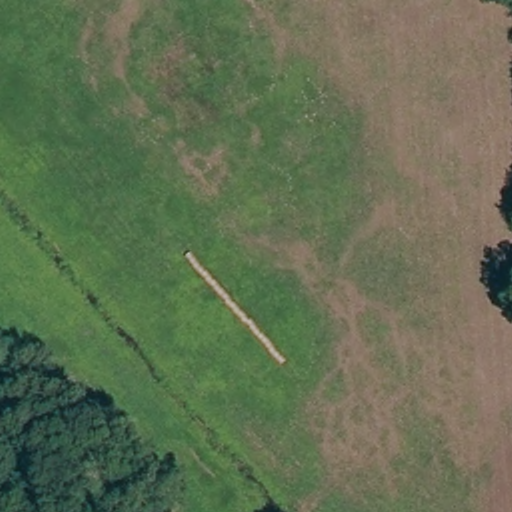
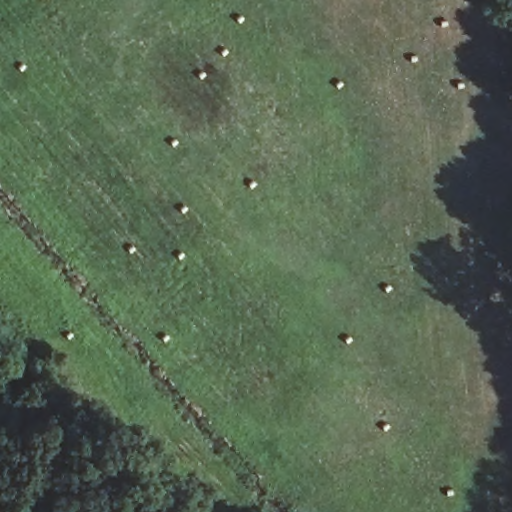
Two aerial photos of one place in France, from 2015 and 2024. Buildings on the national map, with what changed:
[]

